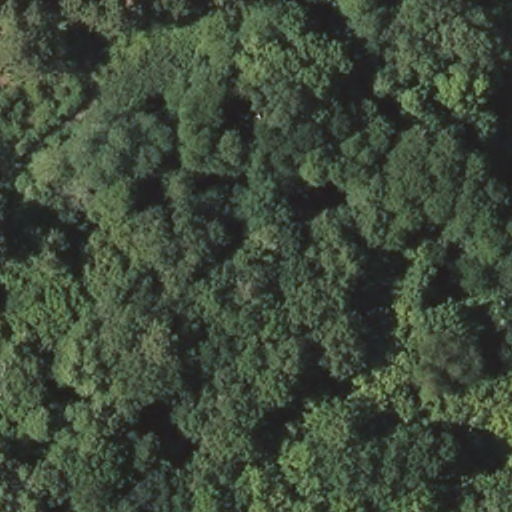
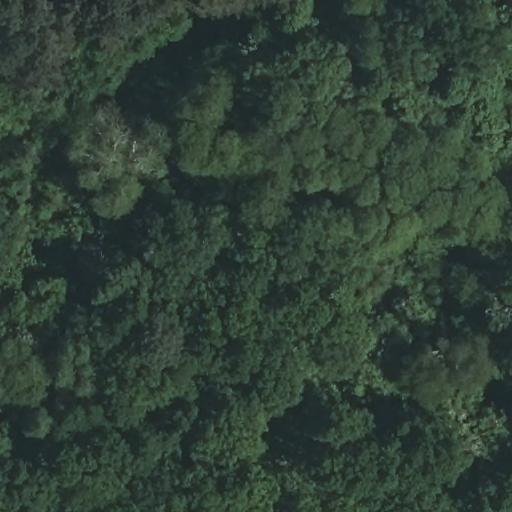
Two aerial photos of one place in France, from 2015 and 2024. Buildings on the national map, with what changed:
[]

